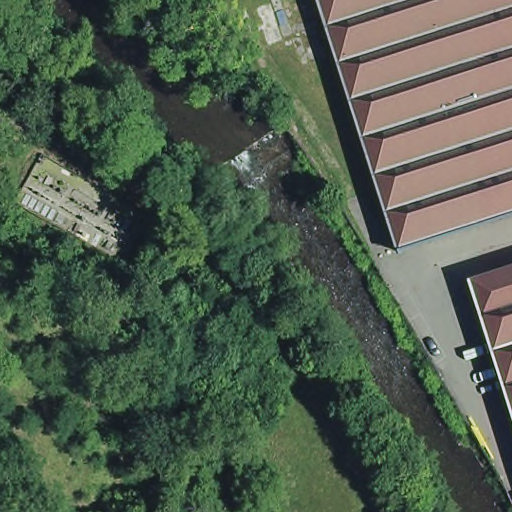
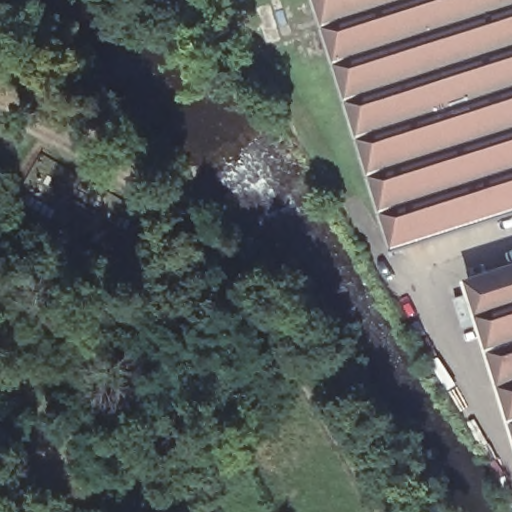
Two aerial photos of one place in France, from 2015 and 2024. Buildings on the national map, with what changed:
unchanged [(399,245),(314,0),(512,0),(512,208),(399,245)]
unchanged [(503,382),(473,388),(449,321),(476,315),(466,277),(512,263),(512,416),(503,382)]
unchanged [(1,346),(11,350),(7,365),(0,363),(0,348),(1,346)]

